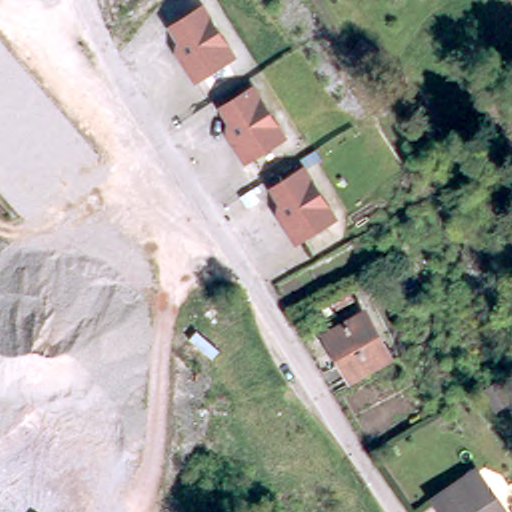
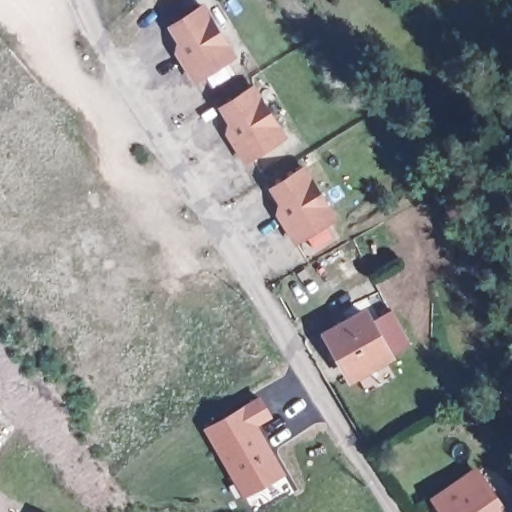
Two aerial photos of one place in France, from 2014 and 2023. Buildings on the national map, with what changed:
unchanged [(247,65),(209,89),(191,60),(195,50),(185,35),(217,15),(247,65)]
unchanged [(382,75),(371,65),(367,62),(366,61),(366,60),(374,51),(380,55),(391,65),(382,75)]
unchanged [(241,142),(244,131),(235,116),(266,96),(297,146),(259,170),(241,142)]
unchanged [(316,177),(347,227),(309,251),(291,222),(294,212),(285,197),(316,177)]
unchanged [(361,310),(385,354),(350,374),(325,330),(361,310)]
new [(234,480),(202,428),(254,396),(265,413),(250,422),(280,470),(255,487),(243,494),(234,480)]
unchanged [(477,476),(501,512),(447,512),(440,501),(477,476)]

